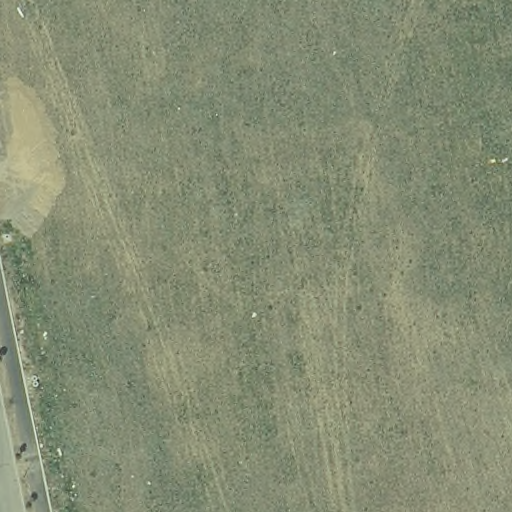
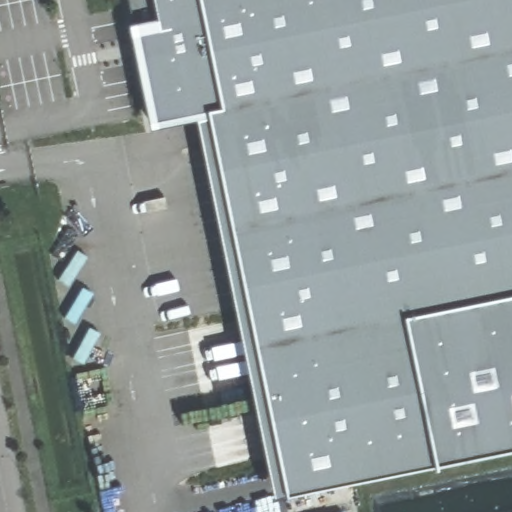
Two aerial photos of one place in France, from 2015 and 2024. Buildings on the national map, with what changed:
new [(512,450),(284,496),(205,113),(151,124),(138,58),(137,58),(133,41),(135,40),(126,0),(512,0),(512,450)]

